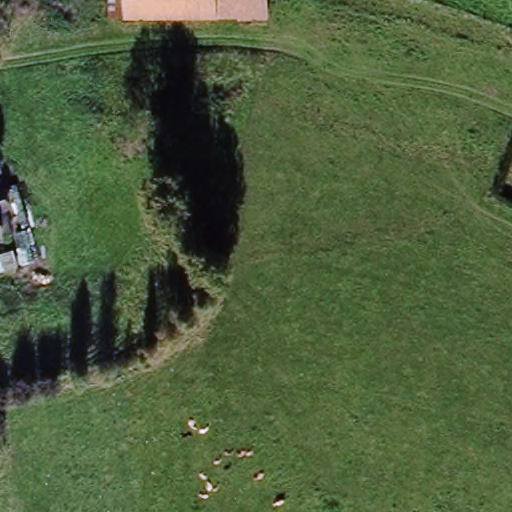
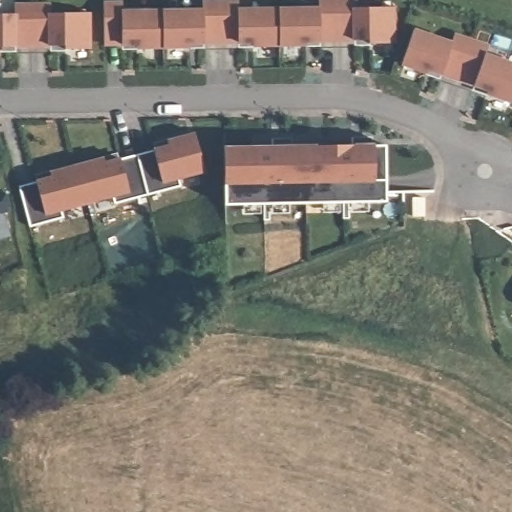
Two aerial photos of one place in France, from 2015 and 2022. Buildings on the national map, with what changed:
new [(123,10),(202,9),(201,1),(221,0),(241,0),(241,9),(319,7),(319,0),(354,0),(354,8),(396,8),(397,46),(354,42),(321,45),(304,45),(304,47),(253,49),(253,45),(239,45),(204,47),(188,47),(188,49),(138,49),(137,46),(123,47),(124,49),(105,49),(103,2),(124,2),(123,10)]
demolished [(228,0),(229,30),(124,35),(123,0),(228,0)]
new [(14,4),(51,3),(53,12),(91,11),(94,51),(64,50),(64,45),(50,46),(50,48),(19,48),(2,47),(1,51),(0,51),(0,15),(15,14),(14,4)]
new [(453,41),(456,33),(490,46),(486,54),(512,63),(512,99),(511,104),(473,91),(474,86),(442,75),(439,81),(401,67),(414,29),(453,41)]
new [(205,175),(180,182),(182,187),(116,206),(114,198),(61,212),(63,220),(29,229),(19,187),(35,185),(34,181),(50,176),(49,172),(106,157),(108,161),(168,145),(166,140),(193,131),(205,175)]
new [(384,146),(387,202),(226,207),(225,185),(224,147),(384,146)]
unchanged [(0,244),(0,193),(11,241),(0,244)]

